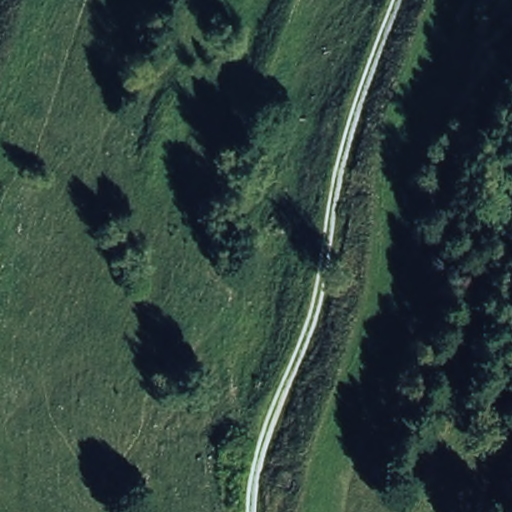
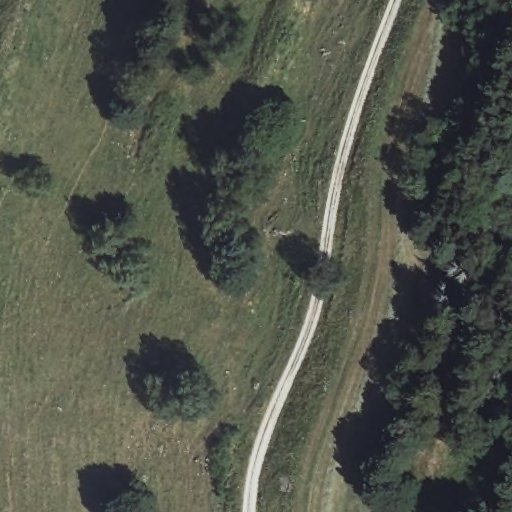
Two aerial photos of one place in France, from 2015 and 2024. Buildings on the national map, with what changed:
[]

